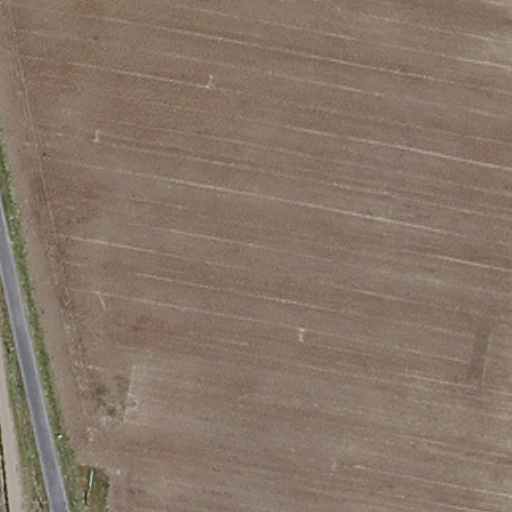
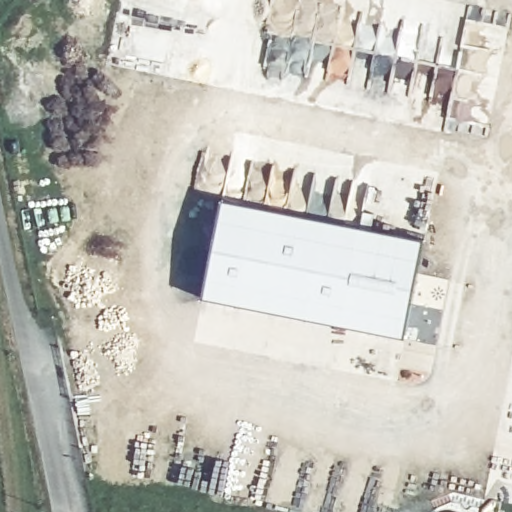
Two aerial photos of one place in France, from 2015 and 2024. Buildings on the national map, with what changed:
new [(424,240),(405,339),(202,298),(222,200),(424,240)]

